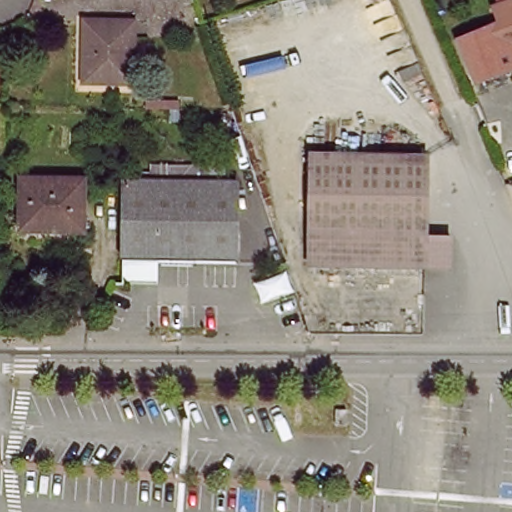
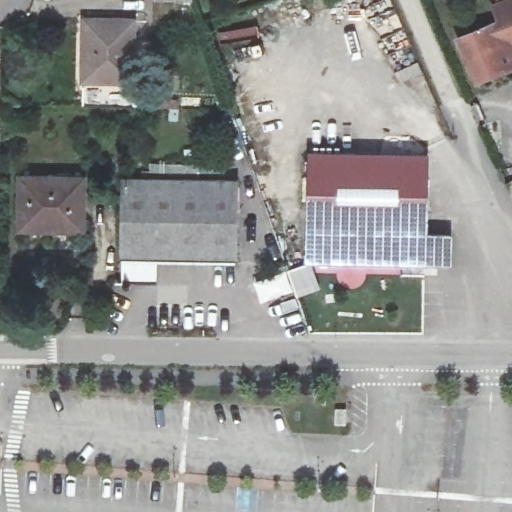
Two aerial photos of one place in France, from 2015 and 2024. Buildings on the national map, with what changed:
unchanged [(454,35),(502,16),(497,5),(511,0),(512,0),(512,69),(472,84),(454,35)]
unchanged [(134,22),(135,86),(83,84),(84,23),(134,22)]
unchanged [(447,266),(405,266),(307,264),(308,152),(423,154),(422,236),(447,236),(447,266)]
unchanged [(234,174),(232,256),(151,255),(151,274),(119,273),(120,256),(121,254),(120,171),(234,174)]
unchanged [(82,230),(65,230),(63,220),(22,220),(22,175),(83,177),(82,230)]
unchanged [(290,271),(298,292),(265,306),(257,284),(290,271)]

